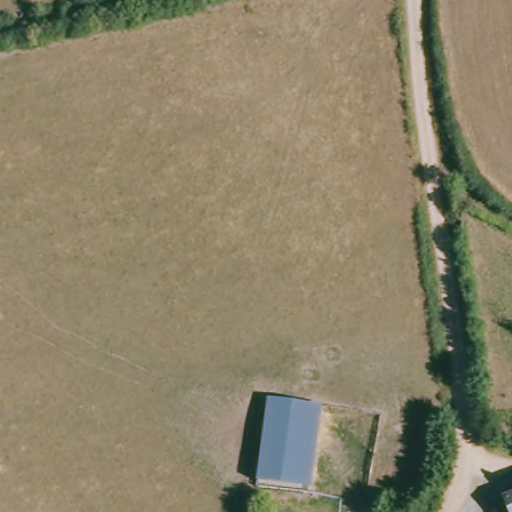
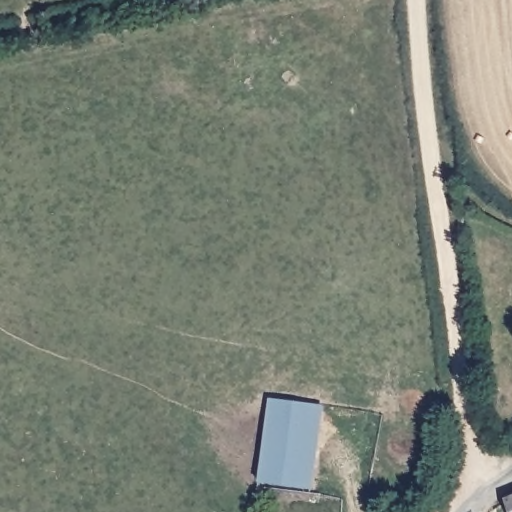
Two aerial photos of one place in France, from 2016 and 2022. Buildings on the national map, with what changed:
unchanged [(309,492),(263,483),(281,398),(324,407),(309,492)]
unchanged [(505,512),(512,504),(512,512),(505,512)]

